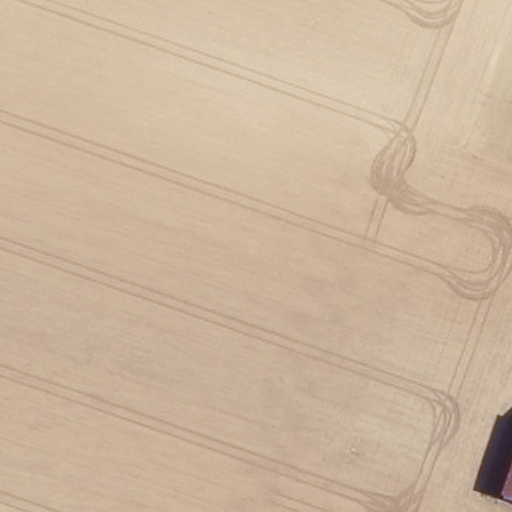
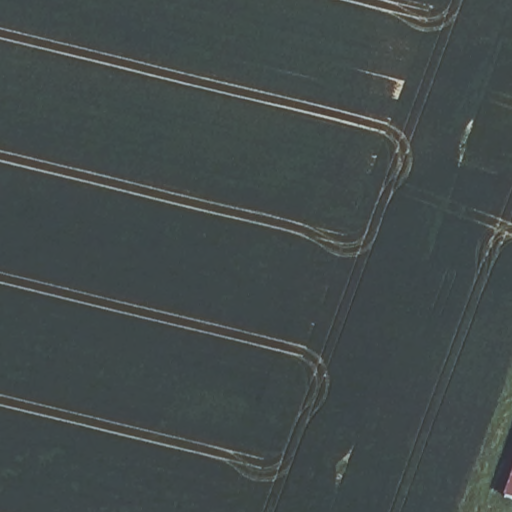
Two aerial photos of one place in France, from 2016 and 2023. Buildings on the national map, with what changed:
unchanged [(507,506),(502,504),(512,473),(512,507),(507,506)]

